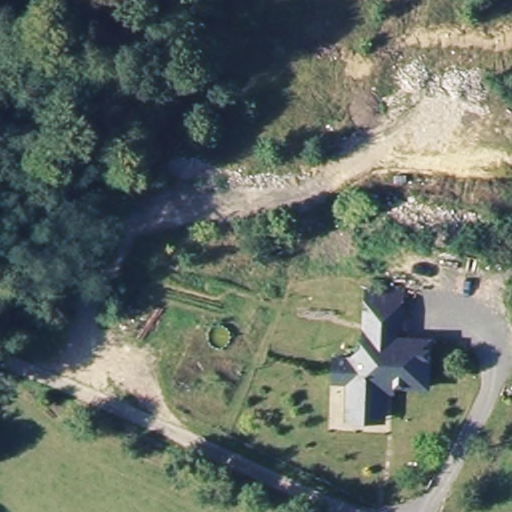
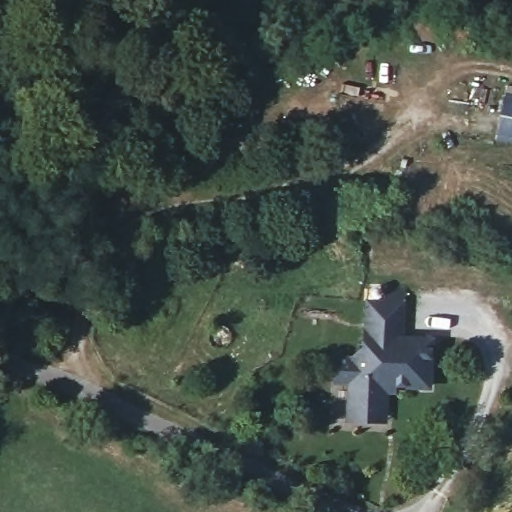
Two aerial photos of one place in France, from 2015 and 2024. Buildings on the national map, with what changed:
new [(512,95),(512,145),(496,142),(507,94),(512,95)]
unchanged [(430,337),(430,383),(386,383),(386,417),(350,417),(350,380),(335,380),(336,354),(354,354),(365,343),(366,299),(366,286),(401,286),(401,299),(400,336),(430,337)]

